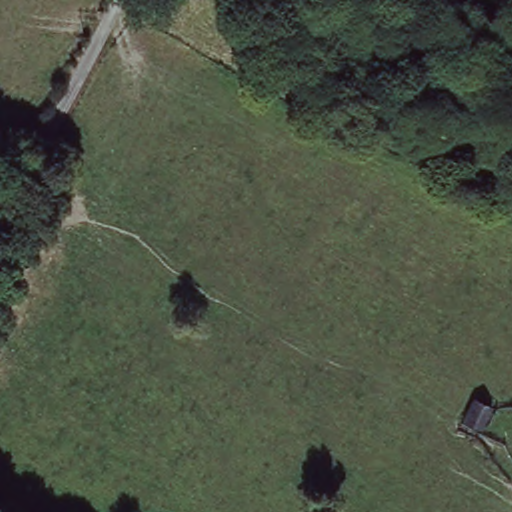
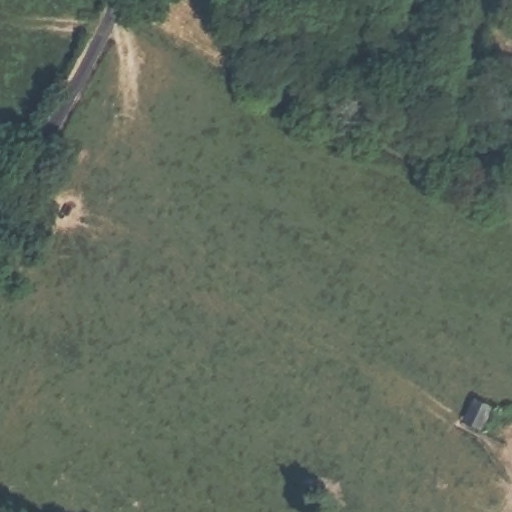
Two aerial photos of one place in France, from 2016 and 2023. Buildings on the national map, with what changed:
unchanged [(496,408),(486,429),(467,420),(477,399),(496,408)]

